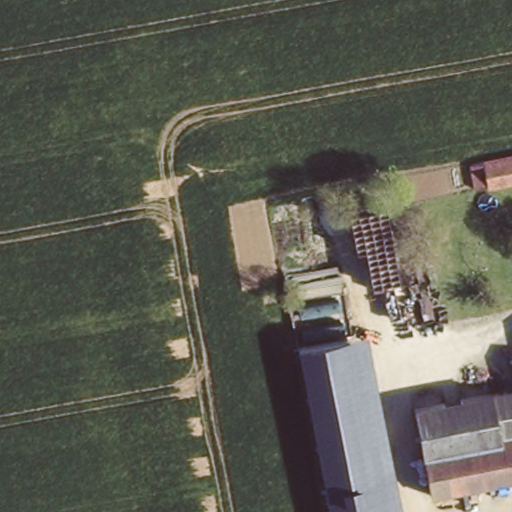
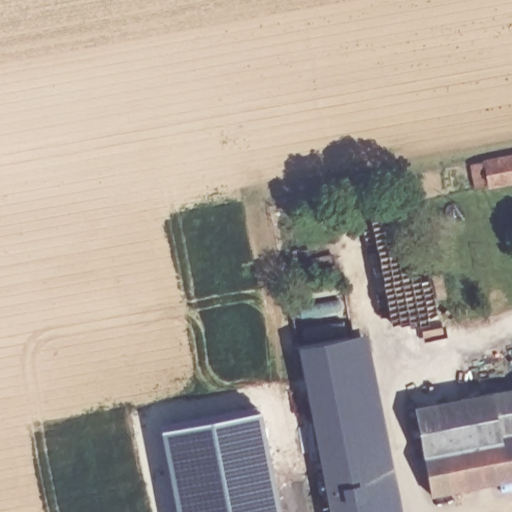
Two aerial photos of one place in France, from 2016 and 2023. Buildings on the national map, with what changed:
unchanged [(475,161),(512,154),(512,180),(480,187),(475,161)]
unchanged [(385,495),(334,505),(303,356),(353,347),(385,495)]
unchanged [(420,407),(512,388),(512,473),(438,488),(420,407)]
new [(258,410),(278,512),(176,512),(160,429),(258,410)]
unchanged [(388,512),(336,512),(334,505),(385,495),(388,512)]

